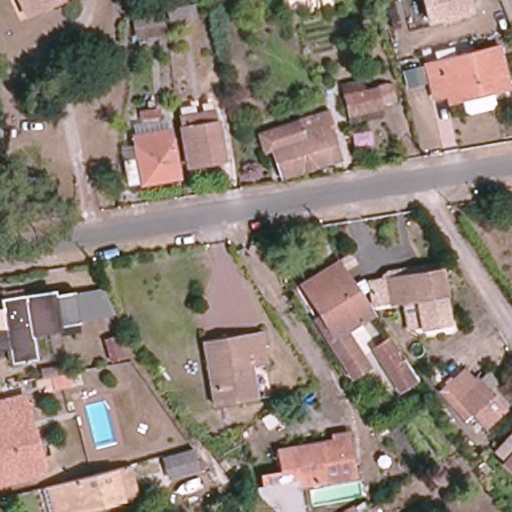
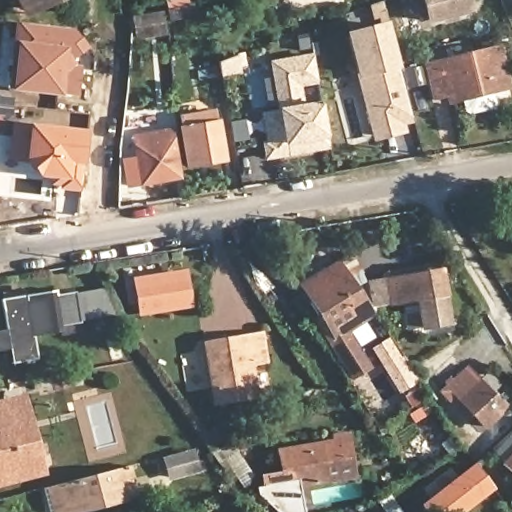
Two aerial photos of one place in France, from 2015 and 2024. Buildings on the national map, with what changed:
unchanged [(31,11),(27,0),(55,0),(31,11)]
unchanged [(468,11),(427,22),(422,0),(465,0),(468,11)]
new [(374,25),(369,5),(382,1),(387,21),(398,69),(412,123),(404,125),(407,134),(373,142),(356,79),(344,32),(374,25)]
unchanged [(193,5),(196,15),(170,21),(168,10),(193,5)]
unchanged [(162,13),(166,35),(138,39),(134,17),(162,13)]
new [(74,29),(89,49),(76,59),(75,66),(81,66),(78,96),(61,94),(61,96),(9,91),(14,41),(16,23),(74,29)]
unchanged [(442,90),(429,93),(421,62),(493,45),(503,85),(486,89),(488,98),(485,102),(464,107),(459,105),(457,96),(444,99),(442,90)]
new [(267,158),(265,145),(275,143),(268,144),(264,116),(281,113),(285,138),(272,64),(313,57),(318,82),(298,86),(302,108),(322,104),(324,115),(329,147),(321,149),(313,150),(267,158)]
new [(408,87),(404,73),(421,69),(425,84),(408,87)]
demolished [(376,85),(380,102),(382,113),(351,120),(344,93),(376,85)]
unchanged [(179,118),(215,111),(217,123),(218,123),(225,161),(188,167),(179,118)]
demolished [(330,128),(339,162),(284,180),(273,149),(268,134),(328,114),(333,127),(330,128)]
new [(88,131),(84,167),(81,166),(80,192),(59,190),(60,186),(49,186),(50,178),(38,177),(24,161),(28,124),(88,131)]
unchanged [(179,174),(128,183),(123,157),(137,154),(135,142),(172,136),(179,174)]
unchanged [(341,328),(363,362),(348,373),(312,317),(317,313),(300,285),(338,262),(370,309),(341,328)]
new [(188,271),(192,309),(138,317),(132,279),(188,271)]
unchanged [(444,294),(418,298),(394,302),(390,282),(440,273),(444,294)]
unchanged [(102,296),(102,297),(102,298),(111,318),(74,324),(69,294),(69,293),(98,288),(102,296)]
unchanged [(55,327),(51,311),(47,311),(50,328),(28,332),(33,361),(7,365),(4,349),(0,349),(0,333),(1,333),(0,324),(0,299),(20,296),(21,301),(69,293),(69,294),(74,324),(55,327)]
unchanged [(444,297),(448,324),(407,331),(402,304),(444,297)]
unchanged [(261,332),(266,365),(251,367),(256,400),(215,407),(206,352),(246,345),(245,335),(261,332)]
unchanged [(123,360),(112,362),(108,340),(119,338),(123,360)]
unchanged [(404,365),(407,362),(419,380),(403,391),(376,350),(388,342),(404,365)]
unchanged [(486,427),(459,398),(477,381),(504,410),(486,427)]
unchanged [(0,487),(0,399),(23,394),(45,475),(0,487)]
unchanged [(347,435),(355,480),(297,486),(293,486),(278,488),(277,471),(274,448),(347,435)]
unchanged [(512,469),(502,460),(512,450),(512,469)]
unchanged [(197,471),(170,478),(165,460),(192,453),(197,471)]
unchanged [(79,512),(56,512),(49,488),(114,471),(122,501),(79,512)]
unchanged [(258,474),(277,471),(278,488),(293,486),(297,486),(303,512),(276,512),(258,498),(255,488),(262,486),(258,474)]
unchanged [(359,512),(344,512),(354,506),(359,512)]
unchanged [(438,512),(435,512),(437,511),(438,512)]

